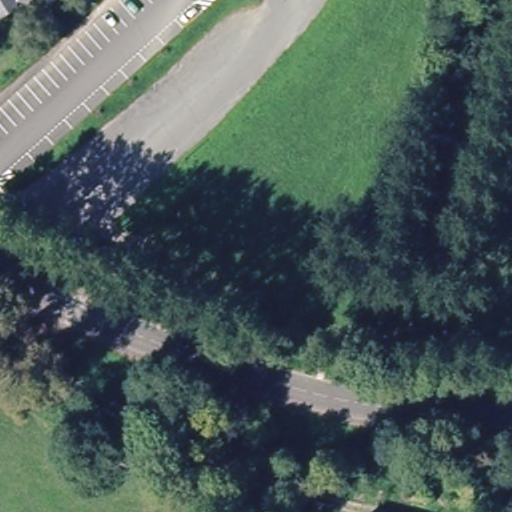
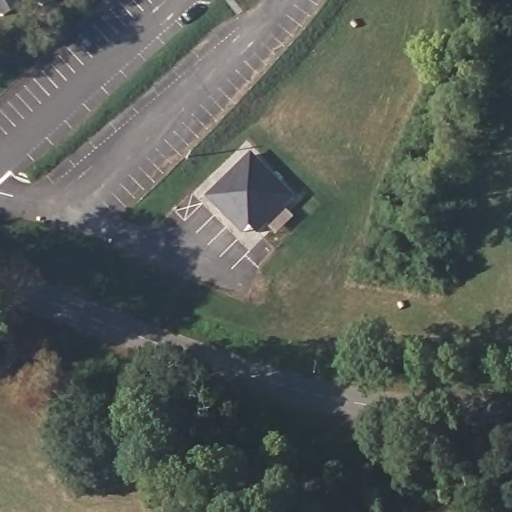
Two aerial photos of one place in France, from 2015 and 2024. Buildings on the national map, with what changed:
unchanged [(35,26),(12,19),(4,27),(0,26),(0,0),(54,0),(46,22),(35,26)]
new [(251,157),(293,201),(256,235),(250,228),(242,235),(208,198),(251,157)]

